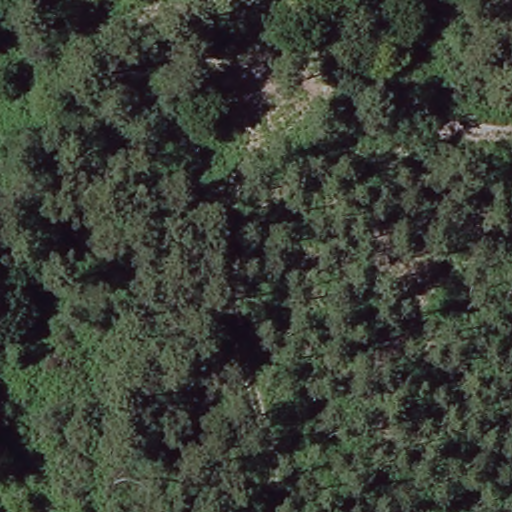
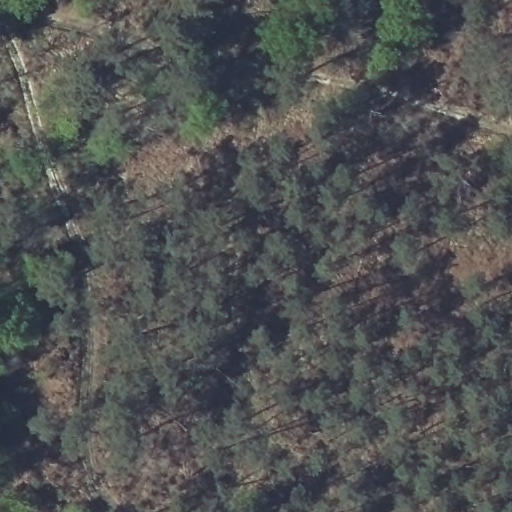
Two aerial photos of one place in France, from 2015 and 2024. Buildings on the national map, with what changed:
[]

